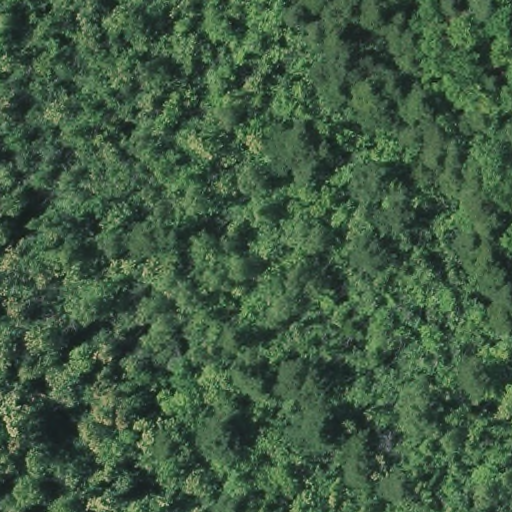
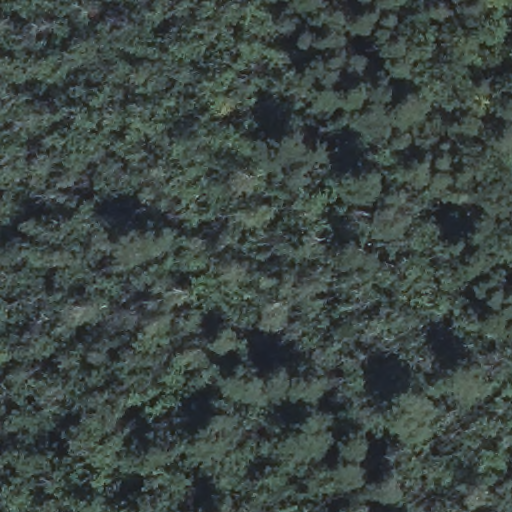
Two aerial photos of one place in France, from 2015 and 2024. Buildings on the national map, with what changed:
[]

